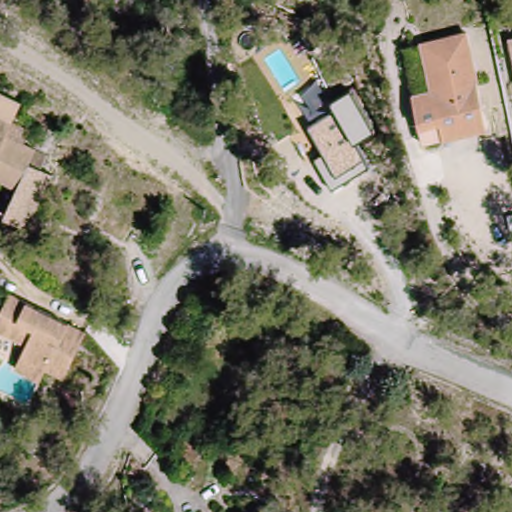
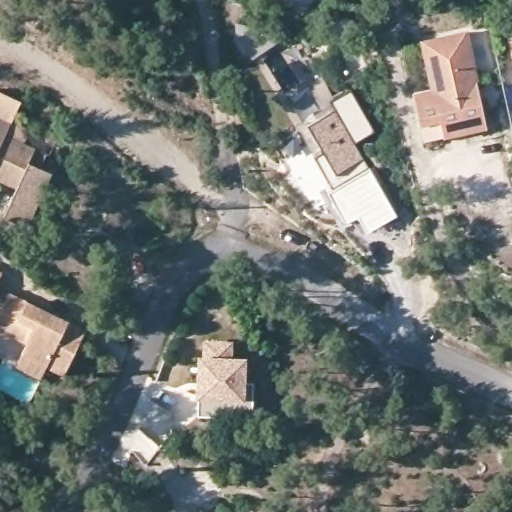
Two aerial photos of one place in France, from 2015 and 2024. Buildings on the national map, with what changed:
unchanged [(424,141),(415,87),(408,44),(425,41),(473,32),(486,131),(469,134),(444,137),(424,141)]
unchanged [(506,37),(512,36),(512,63),(506,37)]
unchanged [(315,157),(324,152),(309,127),(314,125),(303,106),(309,102),(303,94),(318,82),(331,102),(351,90),(374,131),(355,142),(369,168),(333,188),(315,157)]
unchanged [(29,176),(38,182),(6,231),(0,227),(0,197),(3,192),(0,191),(0,95),(19,107),(7,127),(24,138),(20,145),(29,151),(26,157),(37,163),(29,176)]
new [(367,232),(358,217),(346,224),(328,191),(333,188),(369,168),(397,216),(367,232)]
new [(378,173),(392,197),(382,203),(368,179),(378,173)]
unchanged [(2,273),(0,276),(0,273),(2,273)]
unchanged [(14,366),(20,353),(23,338),(8,332),(0,329),(0,303),(4,294),(83,331),(65,371),(47,364),(40,376),(14,366)]
new [(198,396),(200,396),(201,359),(206,360),(206,343),(230,343),(229,360),(244,360),(243,382),(255,382),(253,418),(198,417),(198,396)]

